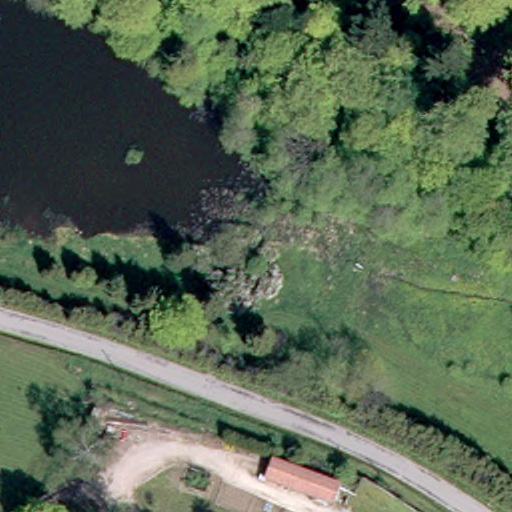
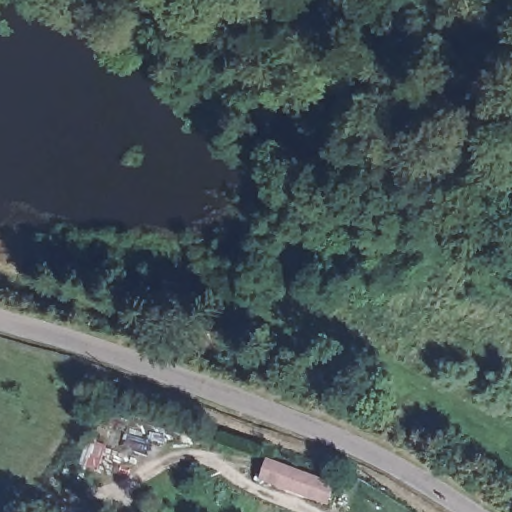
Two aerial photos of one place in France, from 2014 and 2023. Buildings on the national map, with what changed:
unchanged [(339,484),(332,503),(262,479),(271,460),(339,484)]

